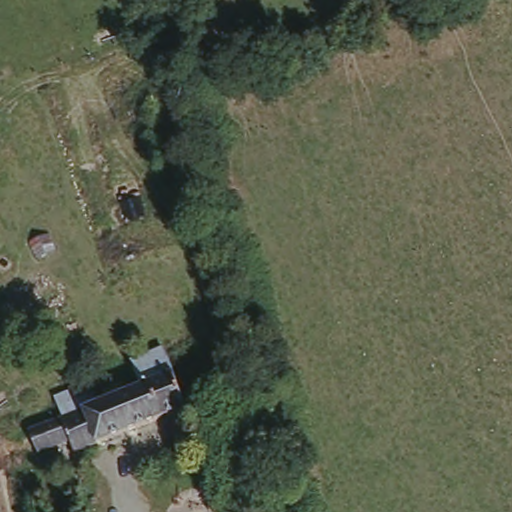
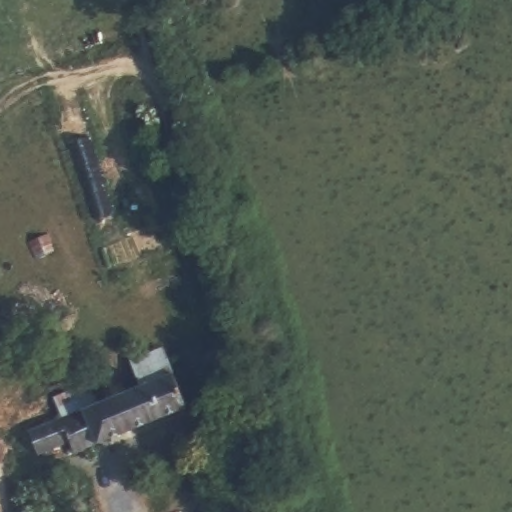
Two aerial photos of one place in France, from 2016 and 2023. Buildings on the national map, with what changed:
unchanged [(24,419),(190,361),(202,402),(71,447),(67,436),(33,448),(24,419)]

